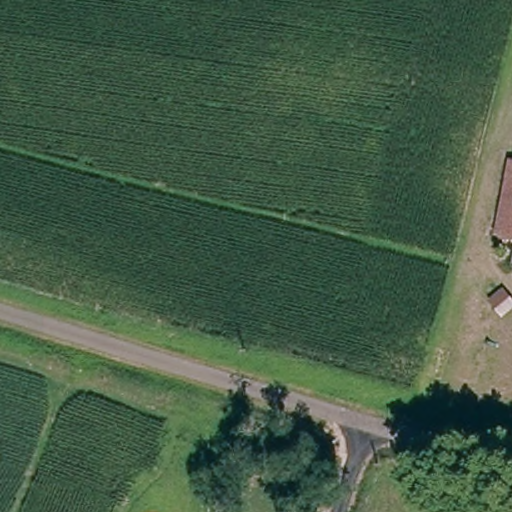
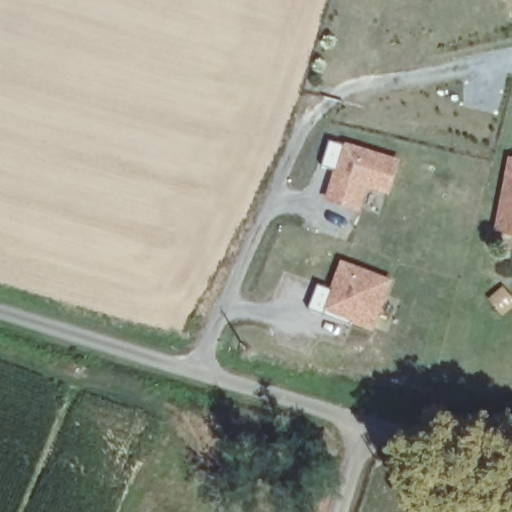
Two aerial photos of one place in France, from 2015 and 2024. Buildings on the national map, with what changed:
new [(344,146),(345,143),(400,161),(389,196),(367,189),(360,212),(324,201),(335,169),(322,166),(330,142),(344,146)]
unchanged [(501,229),(512,171),(512,231),(501,229)]
new [(328,290),(340,261),(392,281),(373,332),(350,323),(349,325),(308,310),(318,286),(328,290)]
unchanged [(507,313),(495,299),(507,288),(512,294),(512,309),(507,313)]

